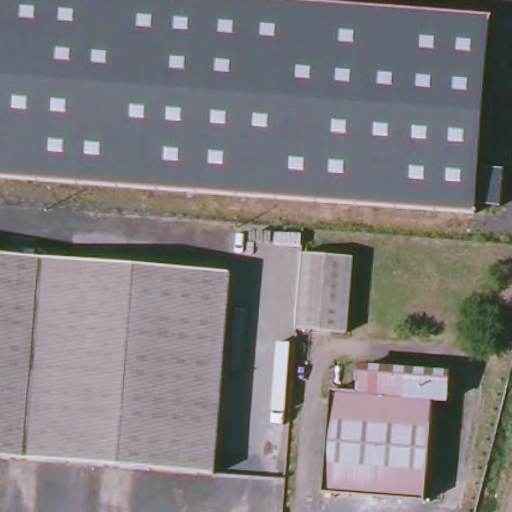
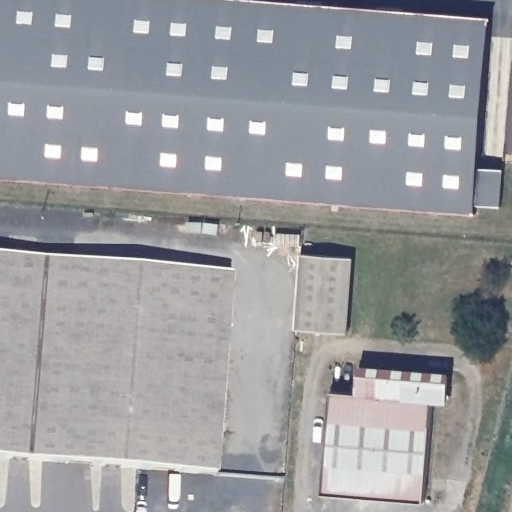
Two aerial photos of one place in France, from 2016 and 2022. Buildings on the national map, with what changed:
unchanged [(478,214),(0,177),(0,0),(267,0),(492,17),(482,166),(503,169),(501,207),(479,205),(478,214)]
unchanged [(353,258),(347,334),(296,330),(301,254),(353,258)]
unchanged [(0,458),(0,255),(231,275),(215,475),(0,458)]
unchanged [(323,494),(333,391),(359,393),(361,370),(449,376),(448,401),(434,401),(424,502),(323,494)]

